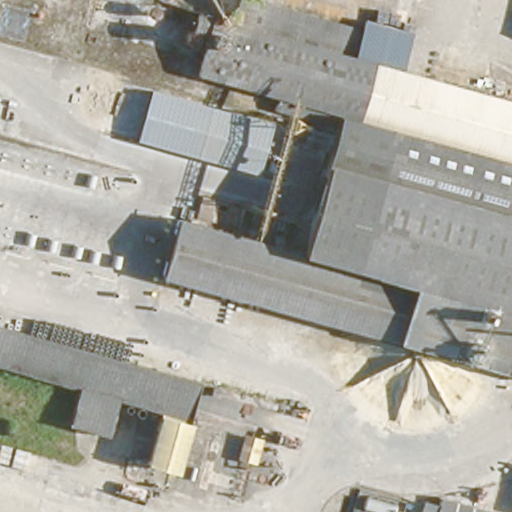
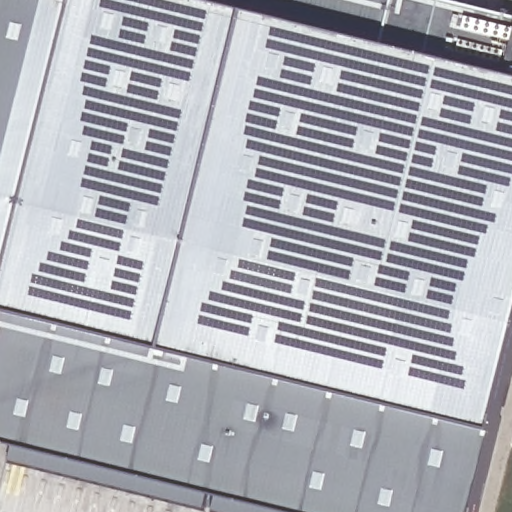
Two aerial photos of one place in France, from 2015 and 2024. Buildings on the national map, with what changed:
new [(512,362),(495,432),(474,512),(290,512),(0,440),(0,0),(444,0),(512,17),(512,362)]
demolished [(512,214),(364,178),(379,129),(197,76),(215,14),(244,22),(249,0),(271,0),(374,30),(367,58),(417,72),(512,100),(512,214)]
demolished [(280,182),(167,147),(185,90),(299,129),(280,182)]
demolished [(171,219),(337,268),(364,178),(512,214),(512,374),(156,270),(171,219)]
demolished [(111,397),(100,432),(66,422),(76,387),(6,368),(0,367),(0,323),(20,328),(201,379),(188,419),(154,410),(111,397)]
demolished [(246,495),(225,490),(244,428),(265,436),(246,495)]
demolished [(427,501),(441,505),(444,494),(491,507),(490,512),(424,512),(427,501)]

